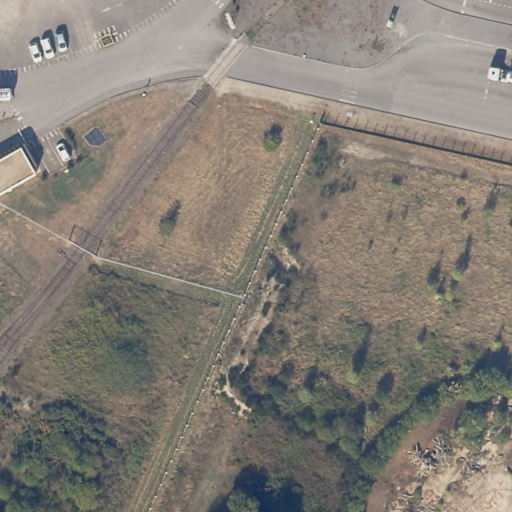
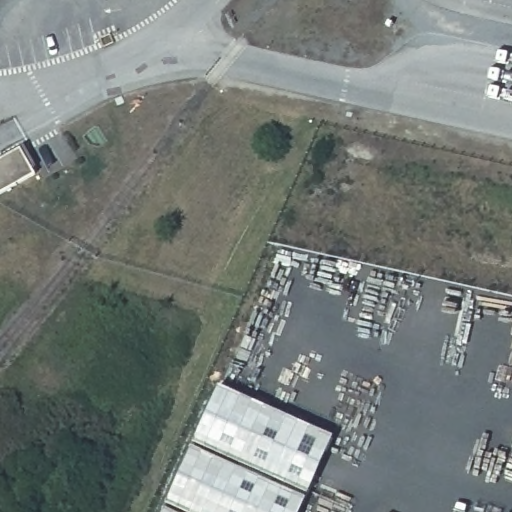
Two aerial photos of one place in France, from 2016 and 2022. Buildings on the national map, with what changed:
unchanged [(15,149),(30,175),(0,193),(0,158),(15,149)]
new [(308,492),(195,441),(220,385),(335,435),(308,492)]
new [(190,512),(167,502),(192,445),(308,497),(301,512),(190,512)]
new [(177,512),(163,512),(166,507),(177,512)]

